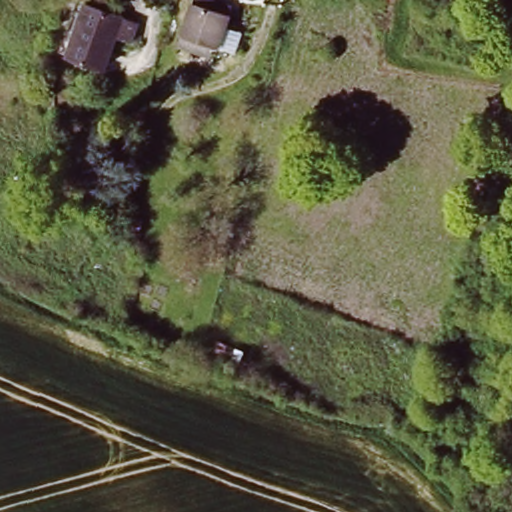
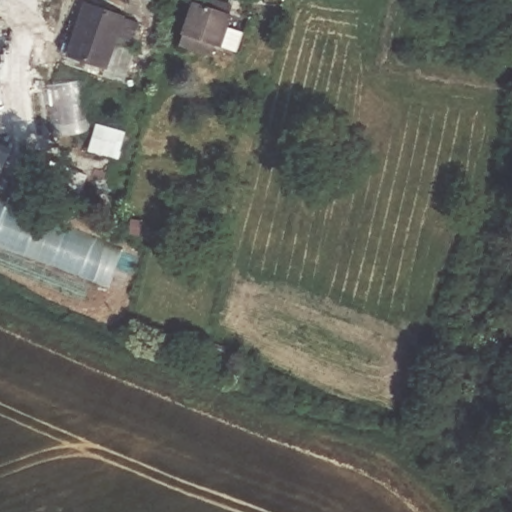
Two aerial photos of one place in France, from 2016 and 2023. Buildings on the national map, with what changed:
unchanged [(223,39),(218,36),(212,49),(183,34),(197,0),(216,0),(236,10),(223,39)]
unchanged [(269,8),(270,0),(285,0),(283,10),(269,8)]
unchanged [(139,16),(132,45),(114,41),(110,60),(73,49),(86,2),(139,16)]
new [(0,143),(13,149),(0,178),(0,143)]
new [(0,244),(0,201),(123,249),(109,286),(0,244)]

